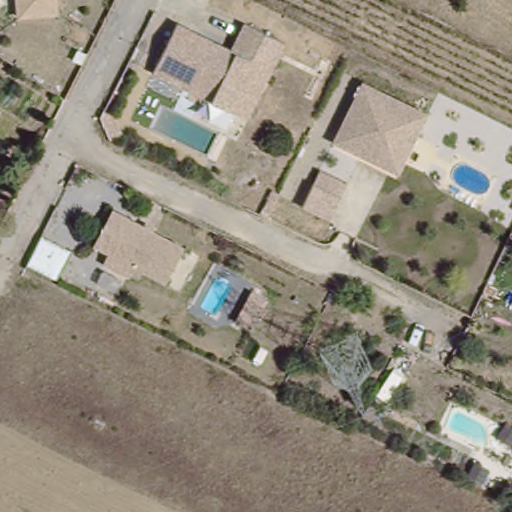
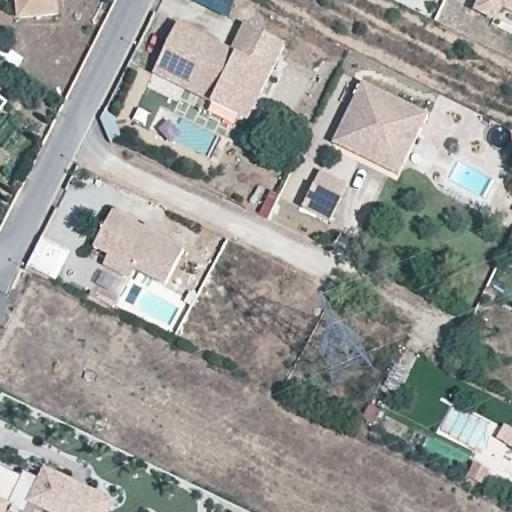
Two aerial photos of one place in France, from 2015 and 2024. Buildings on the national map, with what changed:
unchanged [(24,24),(20,0),(58,0),(60,18),(24,24)]
new [(187,0),(219,0),(212,12),(187,0)]
new [(512,0),(512,28),(477,11),(479,7),(482,0),(512,0)]
unchanged [(291,46),(253,122),(159,76),(183,26),(237,52),(250,25),(291,46)]
unchanged [(428,115),(405,165),(339,133),(364,84),(428,115)]
new [(0,120),(0,99),(11,107),(0,120)]
unchanged [(405,165),(399,177),(332,146),(339,133),(405,165)]
unchanged [(303,209),(314,186),(321,172),(348,185),(342,199),(331,222),(303,209)]
unchanged [(260,217),(272,193),(280,196),(268,221),(260,217)]
unchanged [(106,267),(111,257),(95,250),(114,214),(186,252),(167,287),(136,271),(131,280),(106,267)]
unchanged [(44,240),(74,255),(60,283),(30,268),(44,240)]
new [(255,295),(270,302),(254,331),(239,323),(255,295)]
new [(110,512),(43,512),(36,508),(34,512),(0,512),(0,468),(22,477),(24,473),(39,480),(44,467),(116,501),(110,512)]
unchanged [(511,471),(512,468),(512,472),(511,471)]

